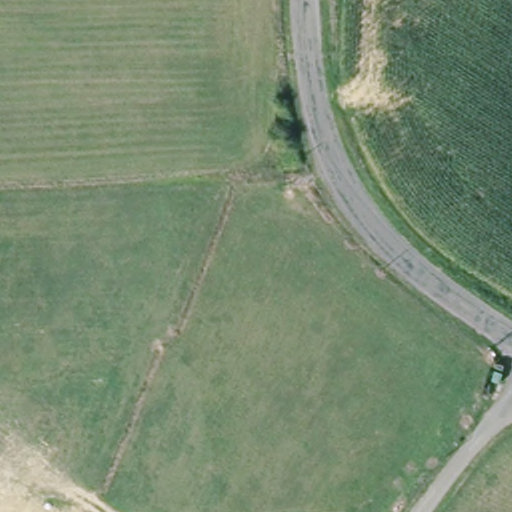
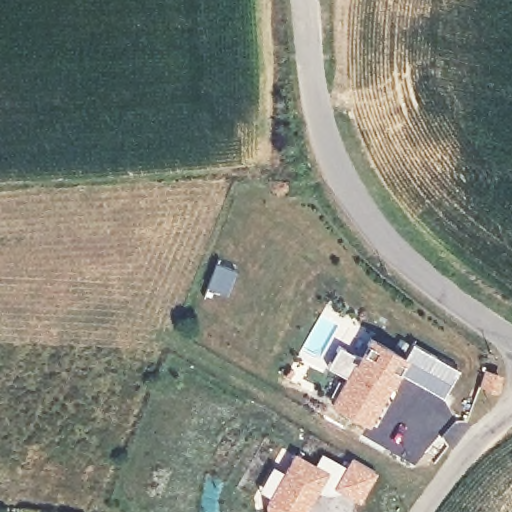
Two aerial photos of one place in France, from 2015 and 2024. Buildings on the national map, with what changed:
new [(329,403),(349,368),(335,361),(346,341),(360,349),(368,334),(404,355),(411,342),(453,367),(441,395),(398,372),(391,385),(369,426),(329,403)]
new [(294,449),(315,461),(320,450),(345,463),(350,454),(376,471),(359,500),(339,488),(319,488),(307,511),(307,512),(266,512),(265,501),(270,492),(258,485),(271,463),(282,470),(294,449)]

